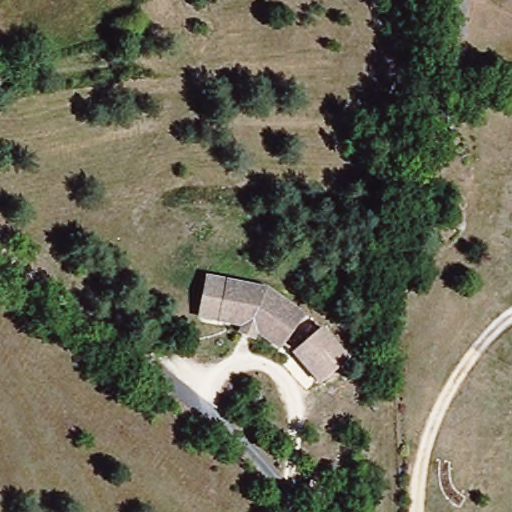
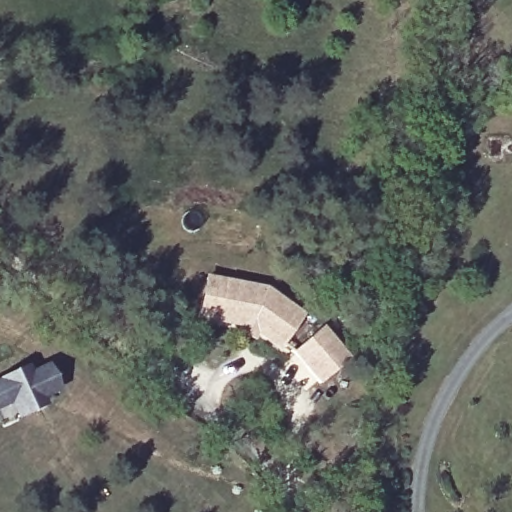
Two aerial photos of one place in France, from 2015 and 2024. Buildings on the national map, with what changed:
unchanged [(263,291),(298,319),(274,351),(246,328),(195,316),(204,277),(263,291)]
unchanged [(341,367),(312,391),(286,359),(316,335),(341,367)]
new [(28,361),(32,368),(48,360),(64,389),(45,399),(47,403),(34,411),(13,369),(28,361)]
new [(13,369),(34,411),(3,426),(0,421),(0,377),(13,369)]

